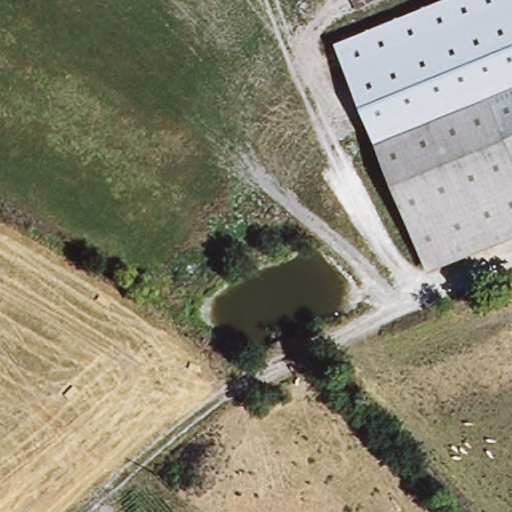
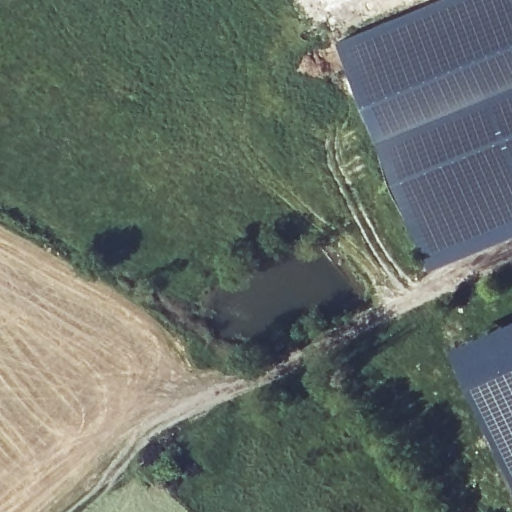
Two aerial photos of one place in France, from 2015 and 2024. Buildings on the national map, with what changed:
unchanged [(379,144),(337,41),(437,0),(512,0),(512,149),(492,99),(379,144)]
unchanged [(492,99),(512,149),(512,240),(432,273),(379,144),(492,99)]
new [(512,475),(452,344),(512,318),(512,475)]

